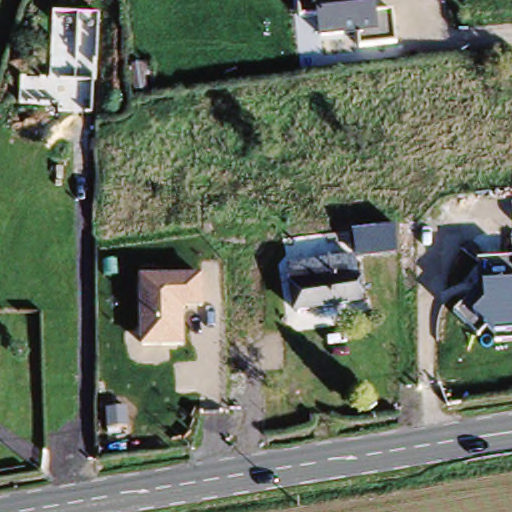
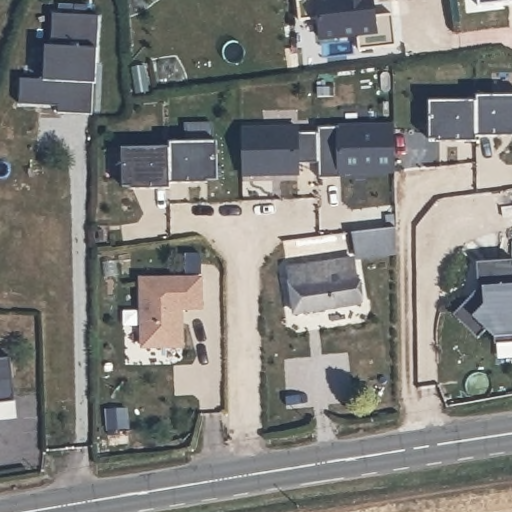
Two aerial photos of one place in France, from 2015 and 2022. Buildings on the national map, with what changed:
unchanged [(393,14),(399,49),(359,54),(356,38),(319,40),(316,22),(299,24),(296,0),(375,0),(377,16),(393,14)]
unchanged [(101,17),(95,115),(58,115),(58,107),(22,105),(22,79),(50,81),(53,15),(101,17)]
new [(512,96),(512,139),(498,139),(498,144),(480,145),(479,97),(512,96)]
new [(432,147),(432,102),(479,102),(480,150),(460,150),(442,150),(442,147),(432,147)]
new [(342,174),(342,178),(320,178),(320,127),(395,126),(397,172),(368,172),(359,173),(342,174)]
new [(244,175),(243,129),(320,127),(320,163),(300,164),(299,174),(281,175),(272,175),(244,175)]
new [(171,142),(218,141),(220,186),(208,186),(208,184),(190,184),(191,189),(172,190),(171,142)]
new [(135,192),(125,192),(123,147),(171,147),(172,195),(153,195),(135,195),(135,192)]
new [(190,184),(208,184),(209,189),(191,189),(190,184)]
demolished [(198,206),(232,206),(276,206),(276,222),(287,222),(287,243),(231,243),(198,243),(198,206)]
unchanged [(396,227),(398,254),(357,257),(355,232),(396,227)]
unchanged [(512,342),(495,342),(494,335),(485,328),(476,338),(453,312),(480,287),(479,263),(512,261),(512,342)]
unchanged [(289,272),(295,271),(295,267),(302,266),(302,270),(317,267),(320,286),(325,285),(323,274),(332,273),(332,275),(354,271),(355,280),(357,280),(360,307),(295,317),(289,272)]
unchanged [(142,276),(203,276),(203,308),(183,310),(185,347),(143,347),(142,276)]

